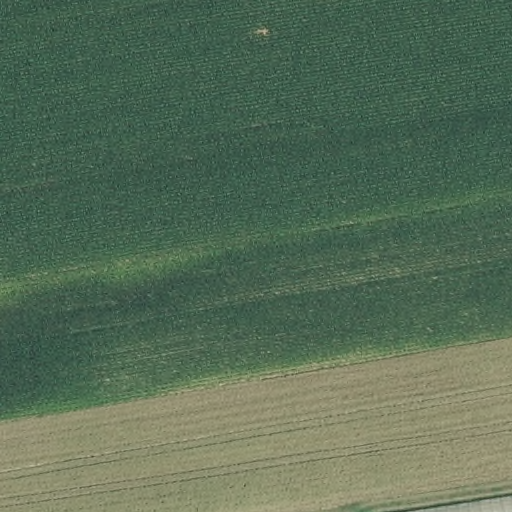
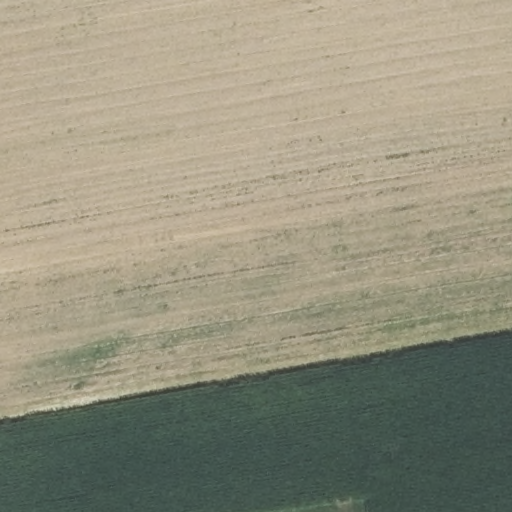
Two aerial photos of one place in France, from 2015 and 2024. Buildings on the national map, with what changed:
demolished [(512,495),(512,512),(398,512),(512,495)]

